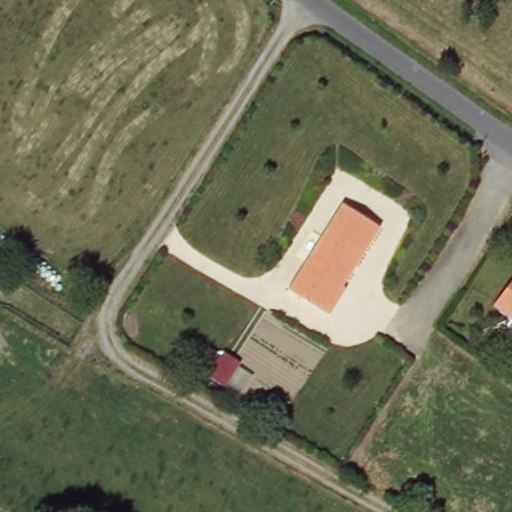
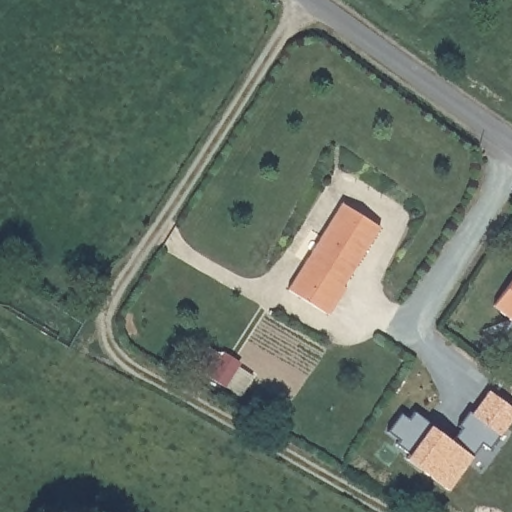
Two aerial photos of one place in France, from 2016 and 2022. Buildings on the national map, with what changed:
unchanged [(344,202),(380,227),(322,312),(286,287),(344,202)]
unchanged [(509,317),(491,302),(512,274),(512,333),(502,326),(509,317)]
new [(223,387),(206,377),(195,369),(207,348),(220,356),(236,366),(223,387)]
new [(395,445),(397,441),(386,432),(400,414),(407,420),(413,412),(430,427),(447,439),(450,441),(460,428),(457,426),(467,411),(471,414),(488,391),(512,408),(512,417),(488,449),(481,443),(456,477),(447,490),(405,459),(408,455),(395,445)]

